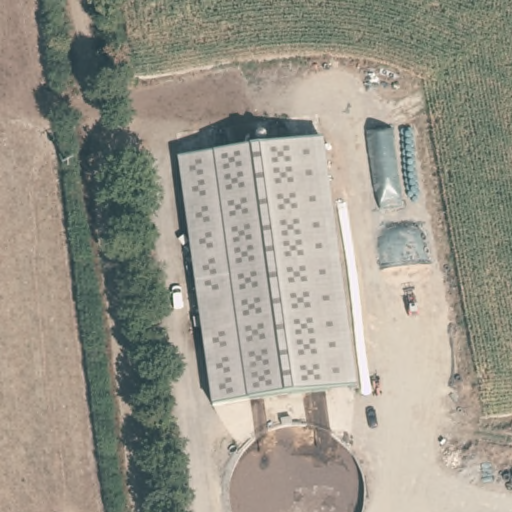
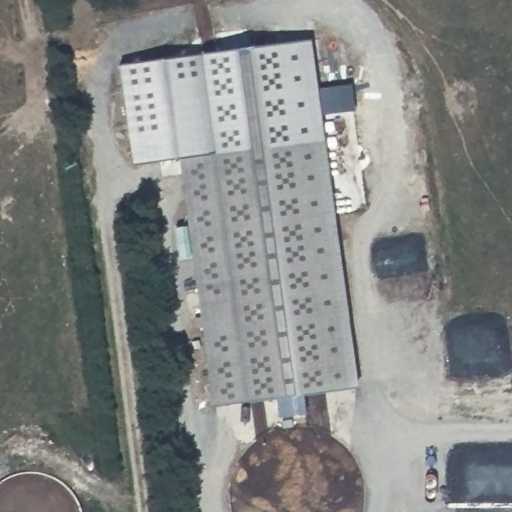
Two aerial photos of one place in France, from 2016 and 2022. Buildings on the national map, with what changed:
new [(321,115),(324,136),(317,137),(213,151),(174,155),(175,159),(132,164),(117,65),(311,39),(317,88),(351,83),(355,110),(321,115)]
unchanged [(342,339),(347,388),(242,400),(213,151),(317,137),(342,339)]
unchanged [(203,405),(174,155),(213,151),(242,400),(203,405)]

